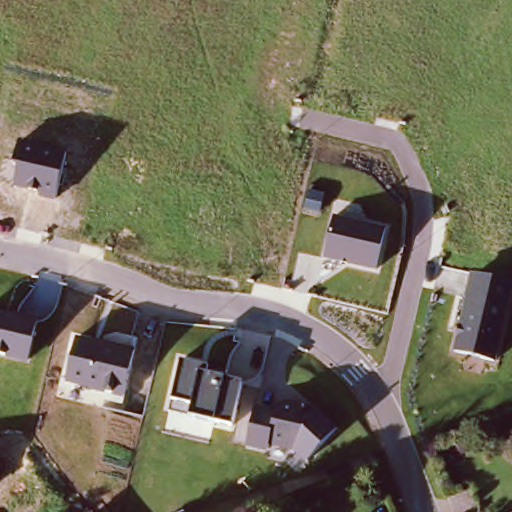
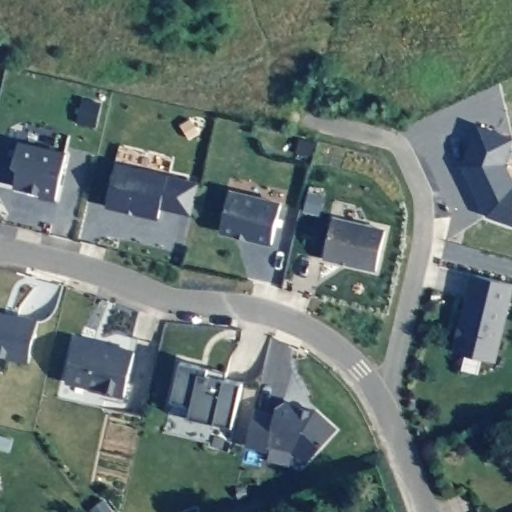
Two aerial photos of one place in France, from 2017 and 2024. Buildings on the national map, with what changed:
new [(512,146),(507,163),(512,175),(512,225),(487,216),(460,166),(477,125),(512,137),(512,146)]
unchanged [(55,202),(39,199),(40,195),(14,189),(17,170),(13,165),(17,145),(66,156),(55,202)]
new [(190,214),(160,207),(157,218),(105,206),(114,166),(167,177),(197,184),(190,214)]
new [(220,231),(228,192),(279,203),(270,242),(220,231)]
unchanged [(323,258),(332,217),(385,230),(375,271),(323,258)]
unchanged [(465,297),(470,273),(512,283),(512,291),(495,362),(453,352),(466,298),(465,297)]
unchanged [(0,357),(0,311),(37,321),(28,363),(0,357)]
unchanged [(92,344),(92,346),(112,350),(113,347),(133,353),(122,397),(95,390),(95,388),(65,382),(75,340),(92,344)]
unchanged [(171,402),(180,362),(199,366),(226,372),(225,379),(242,382),(232,427),(188,417),(168,412),(171,402)]
unchanged [(276,407),(282,403),(297,406),(315,410),(335,431),(306,462),(293,450),(268,444),(267,450),(245,445),(253,410),(275,415),(276,407)]
unchanged [(2,483),(0,485),(0,482),(2,483)]

